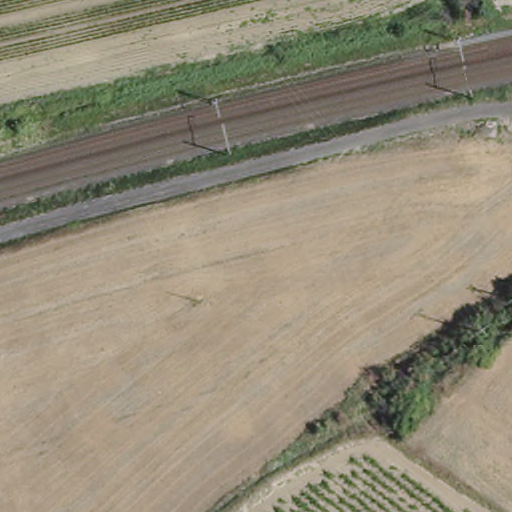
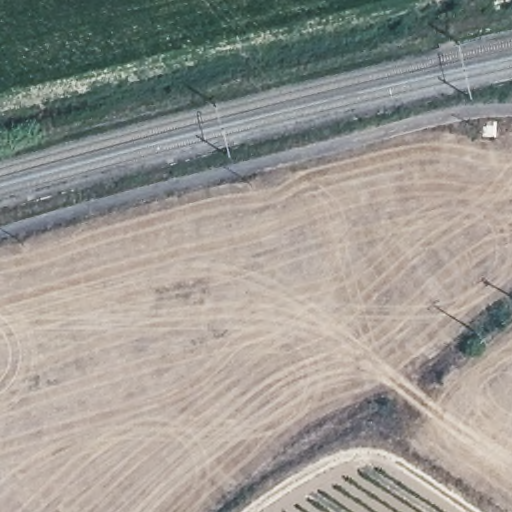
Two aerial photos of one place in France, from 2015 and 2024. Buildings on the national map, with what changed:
unchanged [(497,139),(482,137),(484,128),(487,129),(488,123),(500,125),(497,139)]

